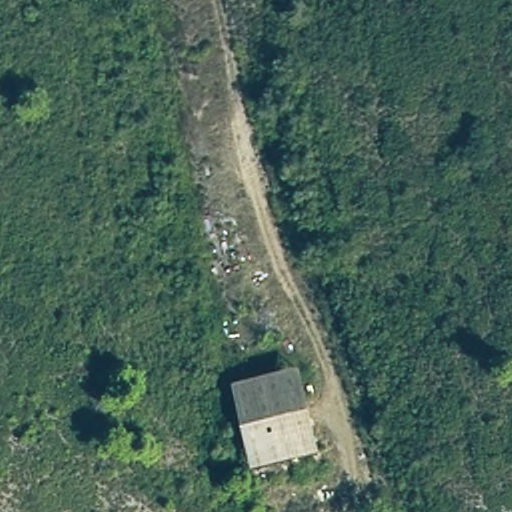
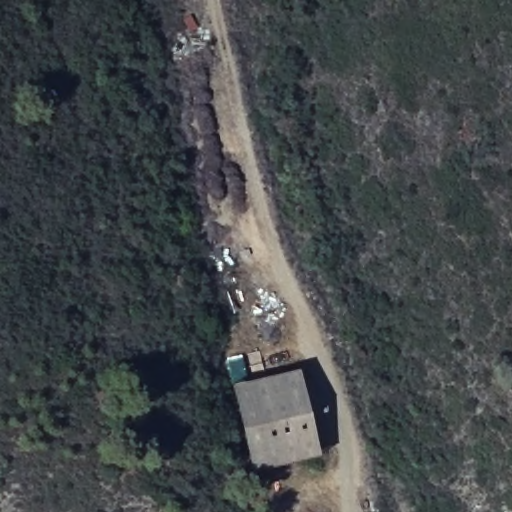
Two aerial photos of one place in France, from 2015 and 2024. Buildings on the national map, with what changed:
unchanged [(229,381),(301,365),(322,452),(252,470),(229,381)]

